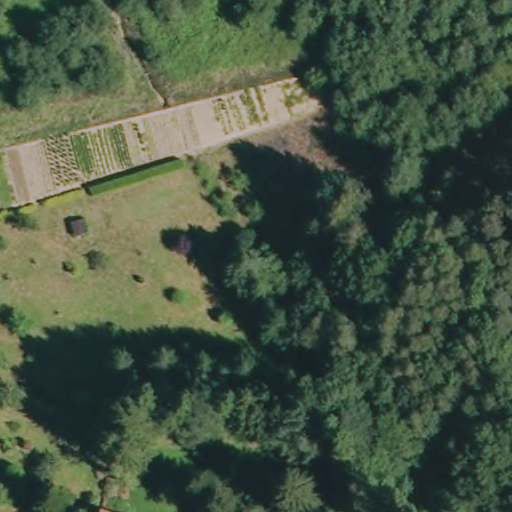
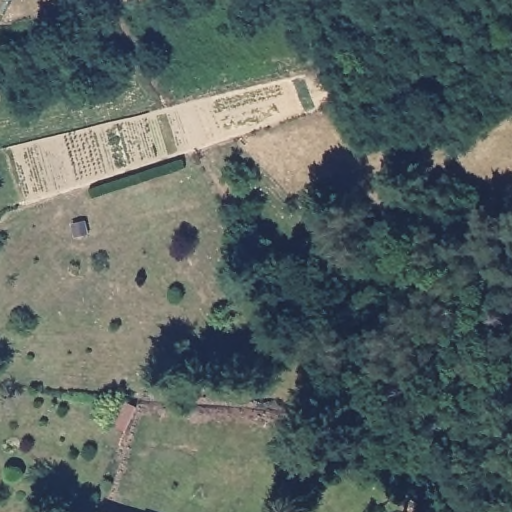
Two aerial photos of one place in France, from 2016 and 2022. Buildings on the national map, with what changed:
unchanged [(103,507),(120,512),(102,512),(103,507)]

